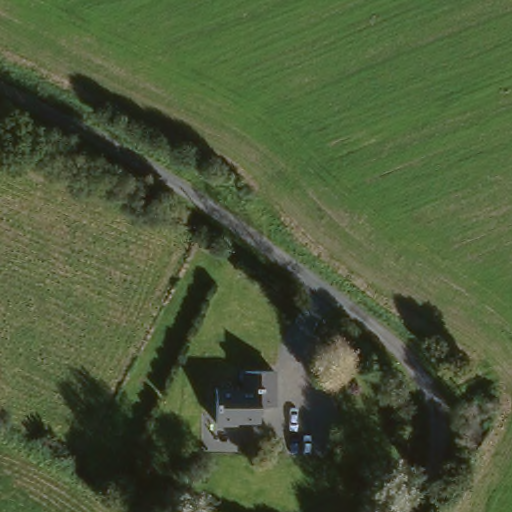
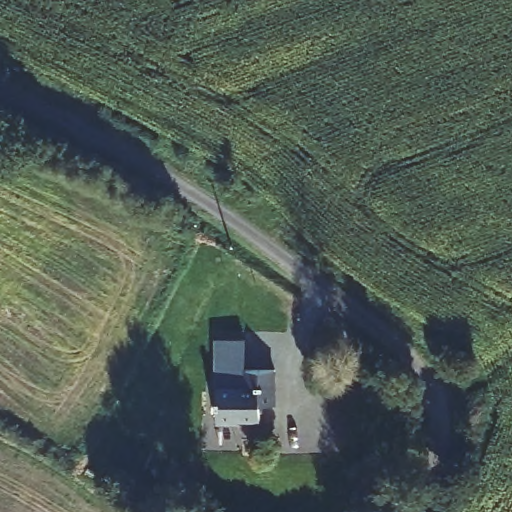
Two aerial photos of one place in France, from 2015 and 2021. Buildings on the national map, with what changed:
new [(244,372),(243,388),(214,389),(215,340),(245,339),(244,372)]
unchanged [(239,419),(239,423),(216,423),(214,389),(243,388),(244,372),(272,370),(273,407),(258,408),(258,419),(239,419)]

